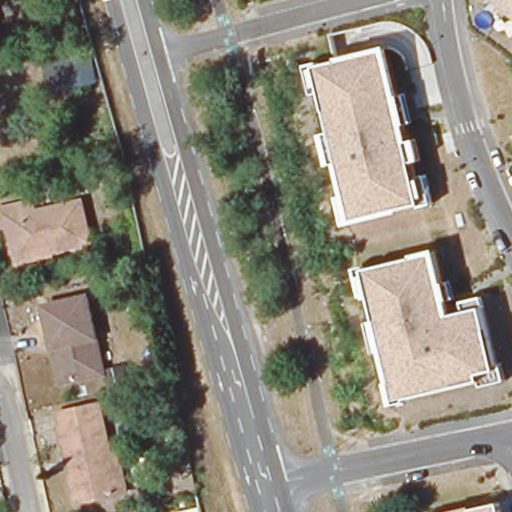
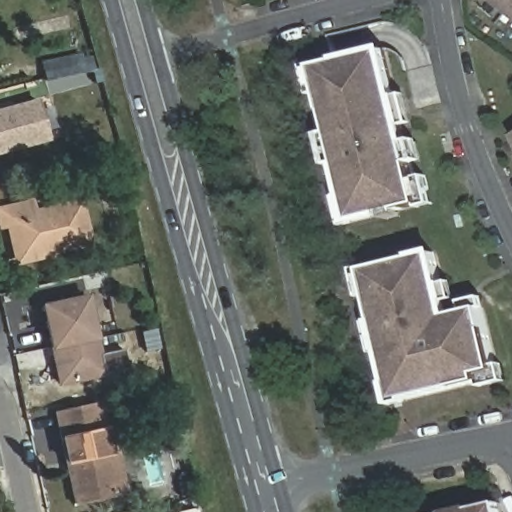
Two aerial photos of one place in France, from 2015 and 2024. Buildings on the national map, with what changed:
unchanged [(512,18),(488,0),(512,0),(512,18)]
unchanged [(348,221),(309,67),(388,47),(428,202),(348,221)]
unchanged [(84,86),(49,92),(42,65),(62,61),(65,75),(80,72),(84,86)]
new [(49,142),(0,155),(0,108),(40,100),(49,142)]
unchanged [(6,231),(0,232),(0,214),(27,207),(30,217),(76,207),(87,249),(14,265),(6,231)]
unchanged [(497,369),(503,367),(507,384),(483,391),(481,382),(393,403),(363,270),(437,250),(452,313),(463,312),(461,302),(485,295),(489,311),(483,313),(497,369)]
unchanged [(44,306),(87,297),(104,375),(60,383),(44,306)]
unchanged [(77,502),(73,484),(78,483),(73,461),(68,462),(60,426),(101,417),(119,492),(77,502)]
unchanged [(458,512),(502,502),(504,512),(458,512)]
new [(198,512),(173,512),(197,507),(198,512)]

